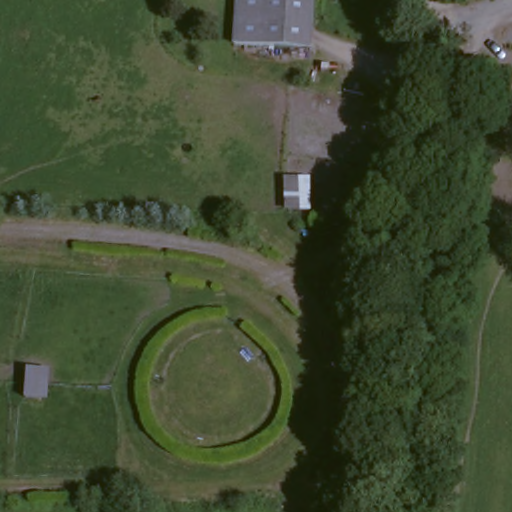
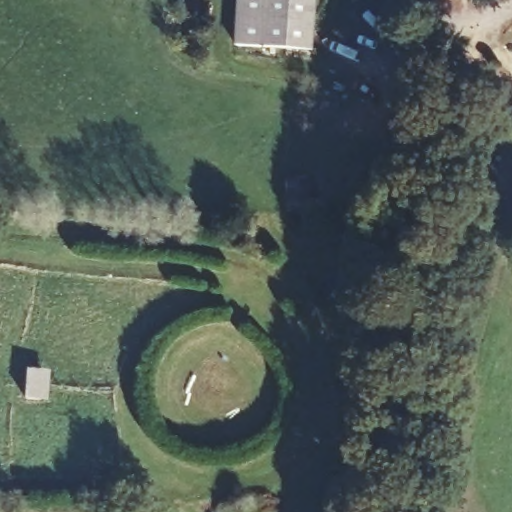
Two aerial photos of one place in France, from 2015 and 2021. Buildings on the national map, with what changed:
unchanged [(308,53),(234,52),(234,0),(308,0),(308,53)]
unchanged [(308,186),(308,218),(286,218),(286,187),(308,186)]
unchanged [(22,372),(49,375),(46,412),(20,409),(22,372)]

